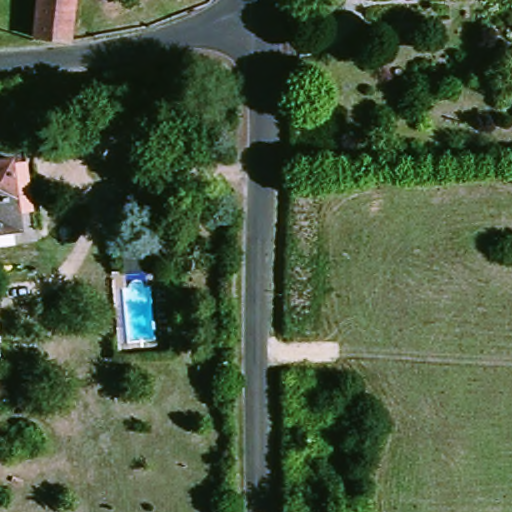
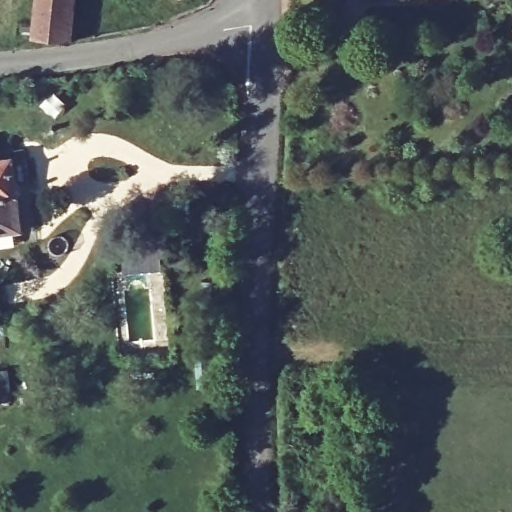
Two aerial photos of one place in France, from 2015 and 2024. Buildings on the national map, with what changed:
unchanged [(40,0),(76,0),(71,45),(36,41),(40,0)]
unchanged [(10,162),(16,201),(0,203),(0,163),(10,162)]
unchanged [(16,201),(21,232),(0,235),(0,203),(16,201)]
unchanged [(152,250),(154,264),(112,271),(110,257),(152,250)]

